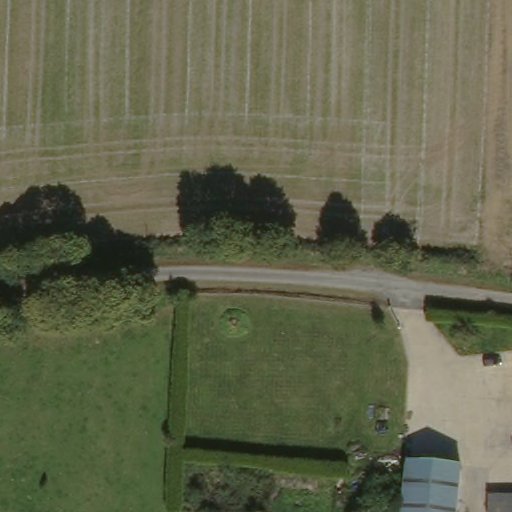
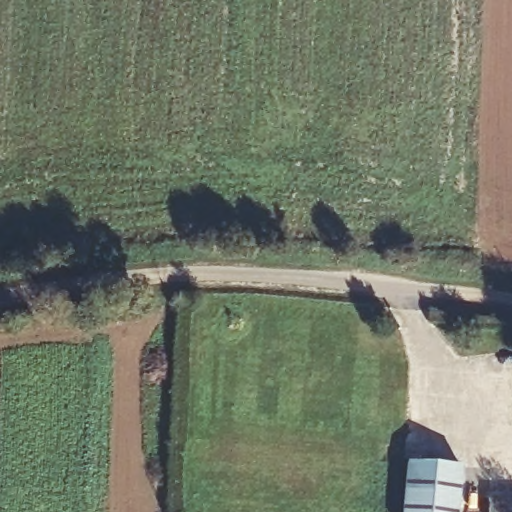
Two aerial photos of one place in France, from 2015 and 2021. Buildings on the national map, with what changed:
unchanged [(459,472),(456,512),(402,512),(406,468),(459,472)]
unchanged [(485,498),(512,498),(512,512),(486,512),(485,498)]

